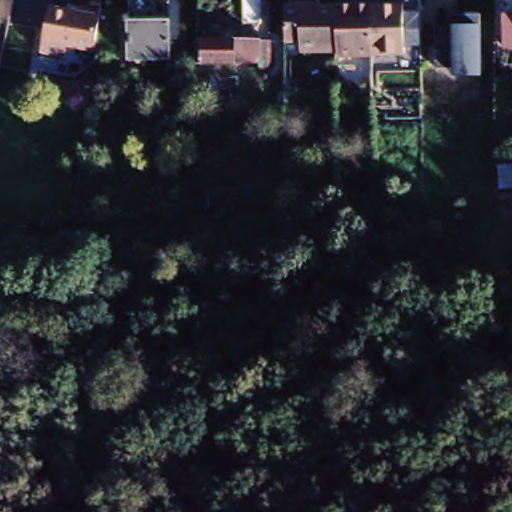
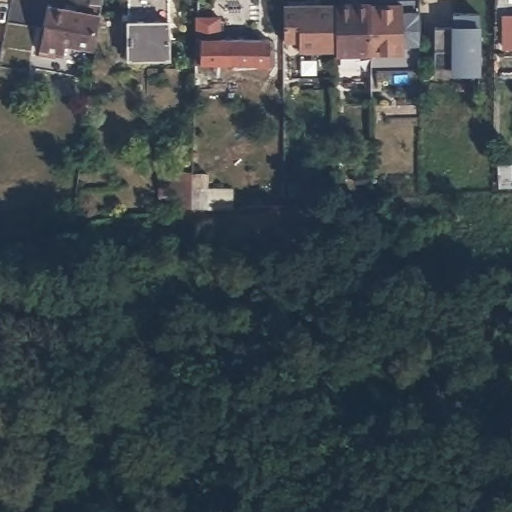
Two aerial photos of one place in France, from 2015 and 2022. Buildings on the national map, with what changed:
unchanged [(46,49),(54,4),(94,10),(95,0),(107,0),(100,48),(73,43),(70,53),(63,52),(62,57),(45,54),(46,49)]
unchanged [(129,59),(129,0),(169,0),(169,58),(129,59)]
unchanged [(242,22),(242,0),(259,0),(259,21),(242,22)]
unchanged [(402,5),(403,57),(370,57),(369,27),(369,6),(402,5)]
unchanged [(336,52),(300,54),(299,43),(284,44),(284,7),(334,6),(336,52)]
unchanged [(369,6),(370,57),(336,57),(336,52),(334,6),(369,6)]
unchanged [(479,14),(479,26),(483,26),(482,75),(452,75),(451,68),(435,67),(435,25),(452,25),(451,12),(479,14)]
unchanged [(512,50),(503,50),(503,12),(512,13),(512,50)]
unchanged [(196,40),(269,41),(269,63),(196,62),(196,40)]
unchanged [(163,182),(163,174),(193,175),(193,182),(163,182)]

